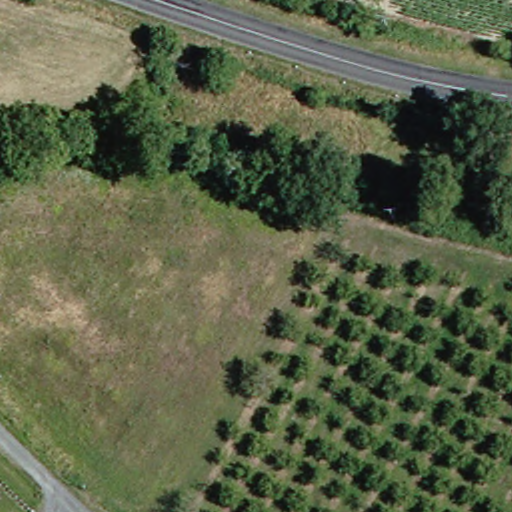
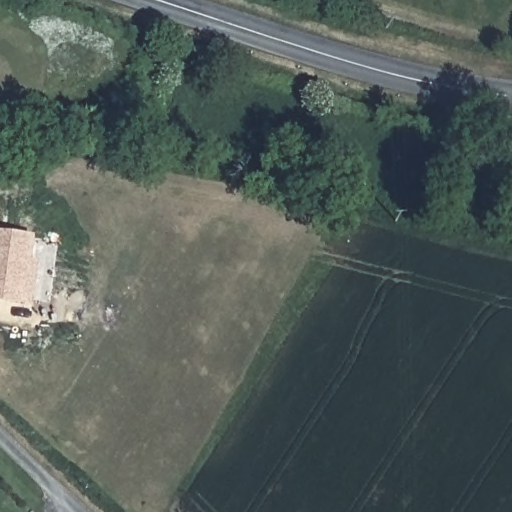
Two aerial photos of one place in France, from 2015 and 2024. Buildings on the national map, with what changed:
new [(0,232),(40,238),(30,307),(0,303),(0,232)]

